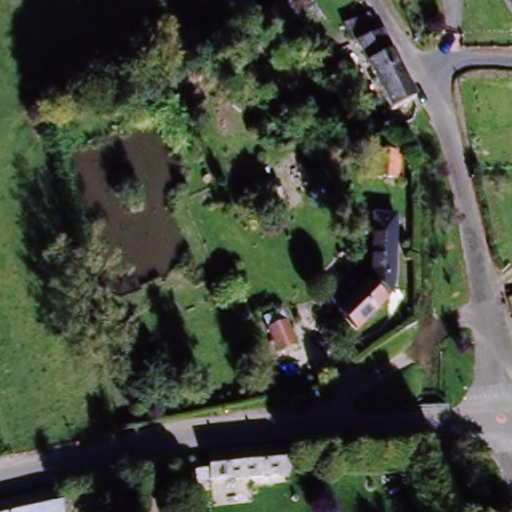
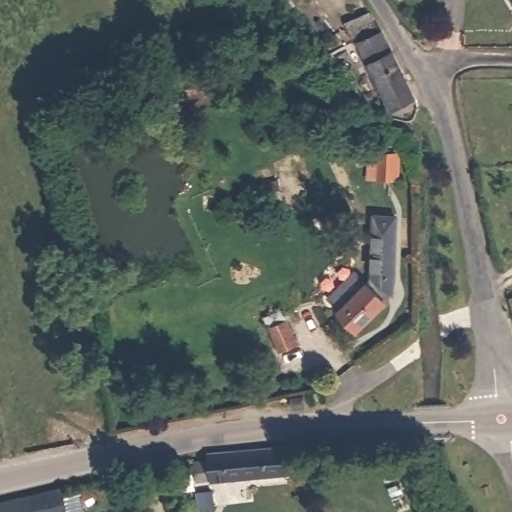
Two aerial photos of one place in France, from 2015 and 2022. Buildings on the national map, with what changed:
unchanged [(510,0),(512,0),(512,3),(510,0)]
unchanged [(411,105),(386,114),(352,43),(346,45),(342,35),(337,37),(334,28),(367,15),(377,35),(400,79),(411,105)]
unchanged [(384,162),(401,162),(402,186),(385,186),(384,162)]
unchanged [(266,220),(256,189),(279,183),(289,217),(266,220)]
unchanged [(373,273),(379,218),(400,231),(397,304),(385,314),(352,338),(345,343),(333,317),(342,311),(371,292),(373,273)]
unchanged [(266,334),(286,326),(296,350),(276,358),(266,334)]
unchanged [(192,471),(205,471),(204,463),(231,460),(282,455),(285,477),(232,481),(205,482),(194,483),(192,471)]
unchanged [(0,512),(0,509),(48,498),(51,512),(0,512)]

